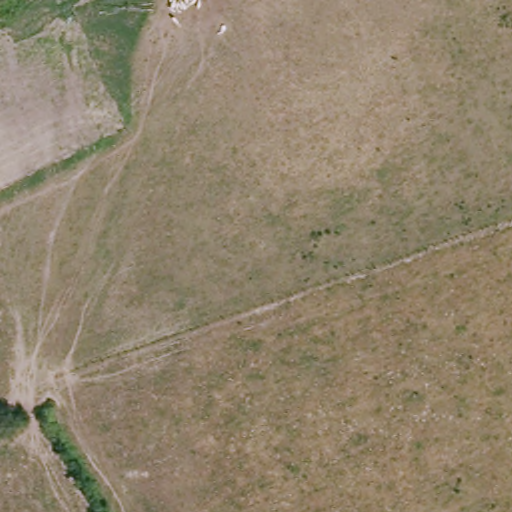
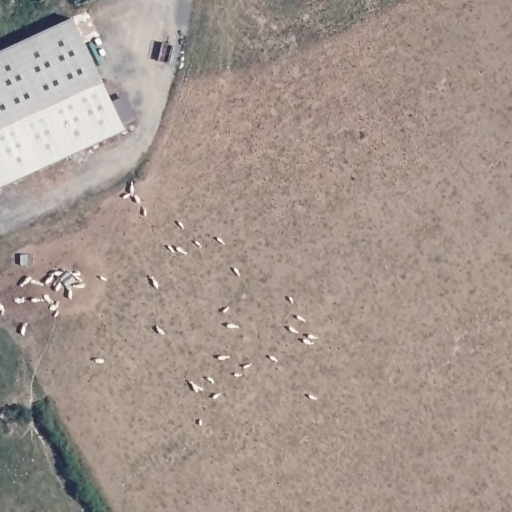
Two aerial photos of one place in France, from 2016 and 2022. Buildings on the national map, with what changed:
new [(75,20),(125,132),(0,189),(0,55),(75,20)]

